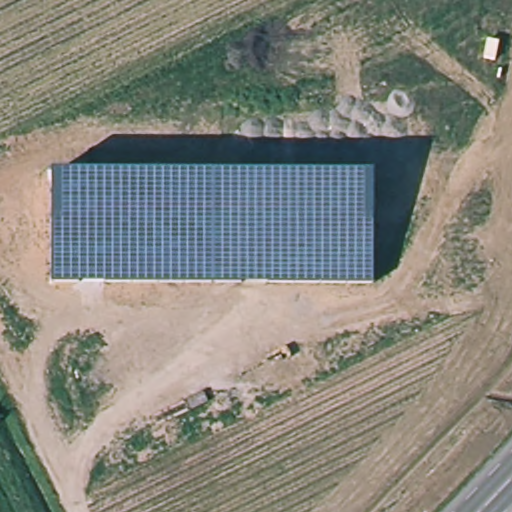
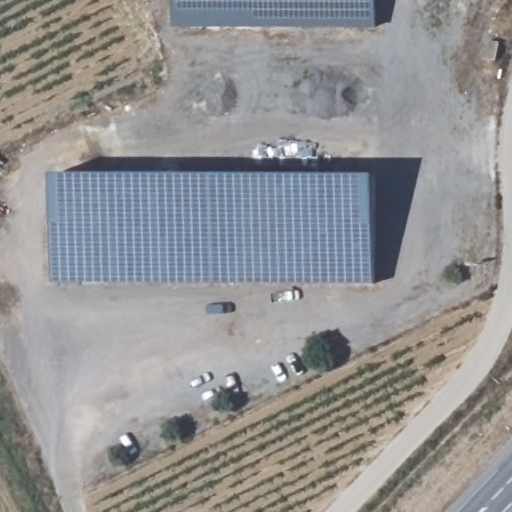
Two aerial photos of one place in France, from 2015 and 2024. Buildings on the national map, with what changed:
new [(173,27),(173,0),(377,0),(376,28),(173,27)]
unchanged [(375,285),(52,283),(52,175),(373,176),(375,285)]

